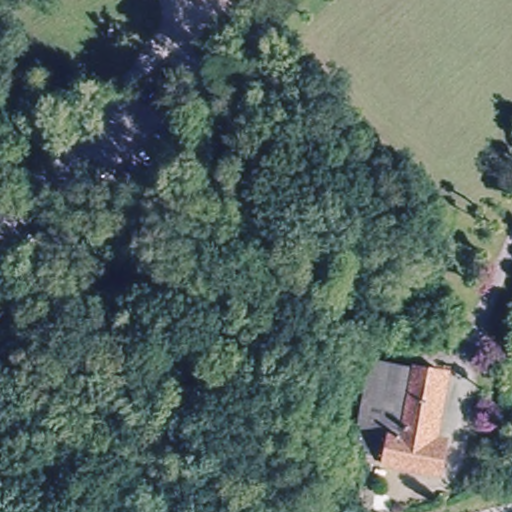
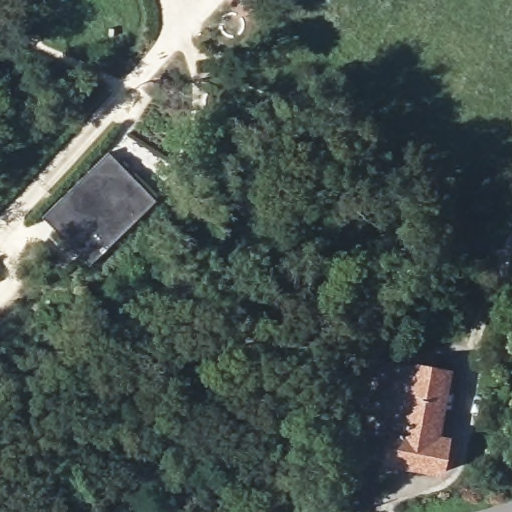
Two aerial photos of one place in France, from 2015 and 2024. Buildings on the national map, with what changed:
new [(105,155),(152,202),(88,265),(42,218),(105,155)]
unchanged [(412,438),(373,430),(388,363),(426,371),(412,438)]
unchanged [(454,377),(440,441),(455,445),(448,476),(396,464),(397,462),(368,455),(373,430),(412,438),(426,371),(454,377)]
unchanged [(353,507),(338,504),(346,458),(362,460),(353,507)]

